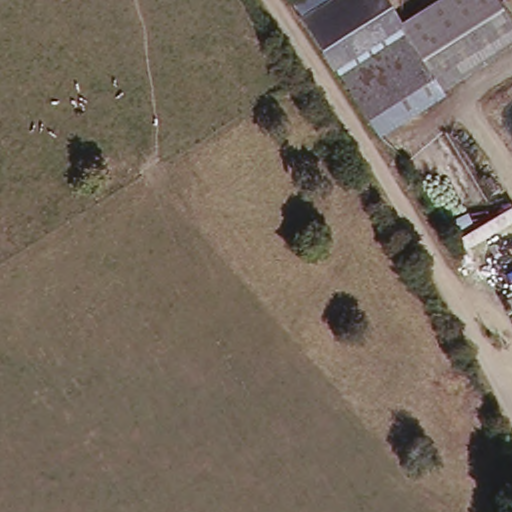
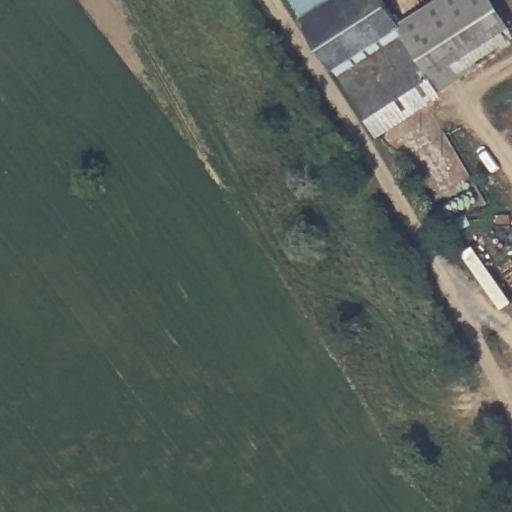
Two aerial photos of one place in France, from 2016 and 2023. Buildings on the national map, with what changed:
unchanged [(297,0),(373,0),(316,31),(297,0)]
unchanged [(391,0),(394,8),(324,47),(323,44),(316,31),(373,0),(391,0)]
unchanged [(501,0),(512,22),(512,46),(435,89),(371,124),(337,69),(406,30),(460,0),(501,0)]
unchanged [(394,8),(406,30),(337,69),(324,47),(394,8)]

